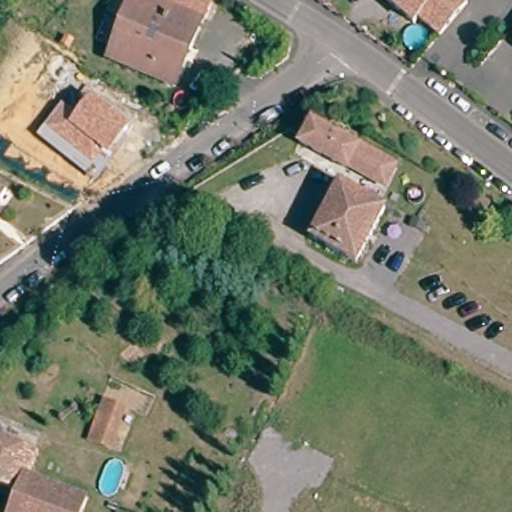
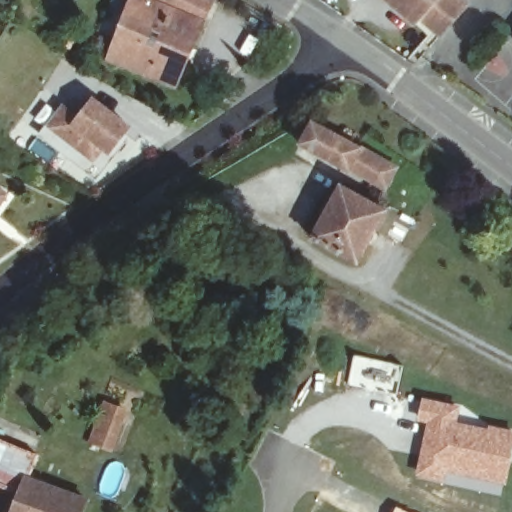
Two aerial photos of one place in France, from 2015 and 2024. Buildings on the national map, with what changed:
unchanged [(176,85),(114,60),(131,11),(136,0),(206,0),(209,1),(176,85)]
unchanged [(444,41),(426,26),(420,32),(379,0),(461,0),(470,8),(444,41)]
unchanged [(54,127),(78,92),(73,88),(89,71),(111,88),(106,96),(140,125),(98,170),(54,127)]
unchanged [(355,172),(354,175),(304,144),(316,121),(398,173),(402,175),(393,193),(388,191),(355,172)]
unchanged [(344,194),(385,216),(357,266),(315,241),(344,194)]
unchanged [(0,204),(0,196),(4,199),(0,204)]
new [(425,428),(418,426),(423,398),(461,406),(458,422),(488,428),(489,426),(512,430),(512,454),(506,485),(446,474),(445,480),(415,475),(425,428)]
unchanged [(92,444),(110,406),(115,408),(129,415),(111,453),(100,448),(92,444)]
unchanged [(26,481),(84,508),(82,512),(7,512),(16,493),(0,485),(0,438),(38,458),(26,481)]
new [(395,505),(410,512),(392,512),(395,505)]

